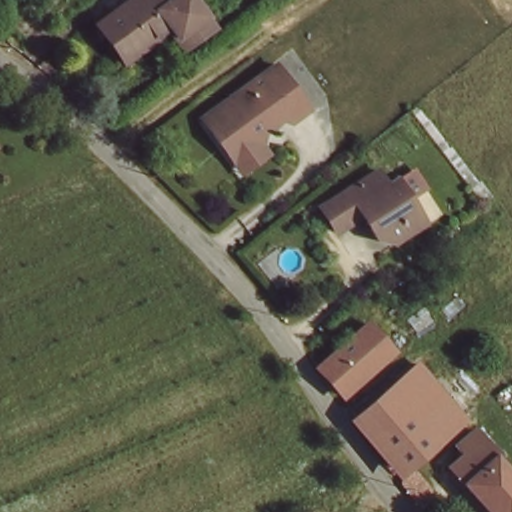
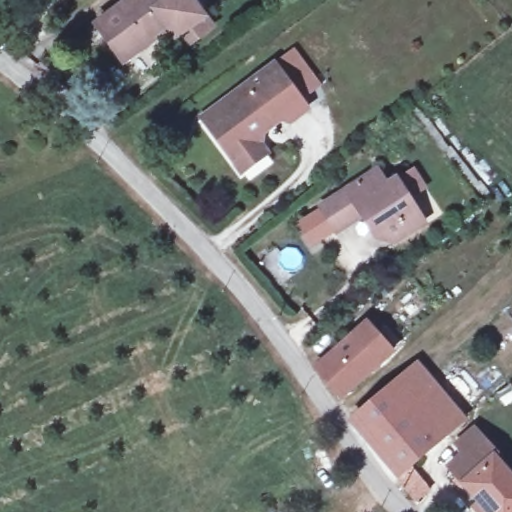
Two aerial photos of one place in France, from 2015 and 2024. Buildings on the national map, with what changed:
unchanged [(182,50),(171,37),(124,74),(93,39),(144,0),(145,0),(177,0),(178,1),(179,0),(189,0),(202,16),(211,27),(217,34),(187,57),(182,50)]
unchanged [(241,169),(234,159),(202,115),(276,61),(301,96),(263,124),(260,140),(267,150),(241,169)]
unchanged [(409,238),(384,252),(360,218),(333,234),(317,209),(375,175),(386,194),(398,187),(416,217),(423,229),(409,238)]
unchanged [(370,325),(393,352),(342,398),(321,368),(370,325)]
unchanged [(352,424),(350,422),(381,397),(413,372),(434,398),(372,448),(352,424)]
unchanged [(457,429),(399,479),(372,448),(434,398),(457,429)]
unchanged [(512,480),(512,512),(490,512),(454,466),(470,454),(465,448),(485,433),(511,468),(506,471),(512,480)]

